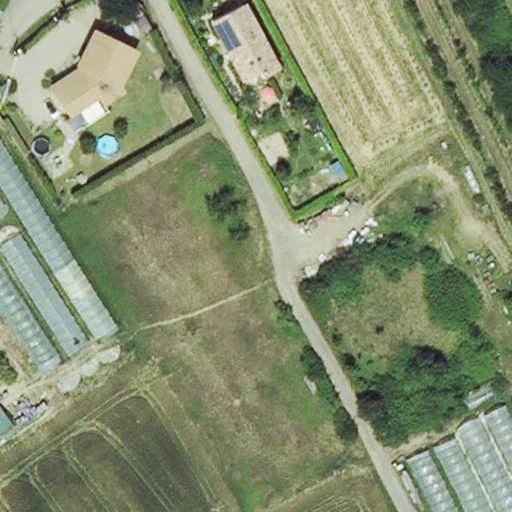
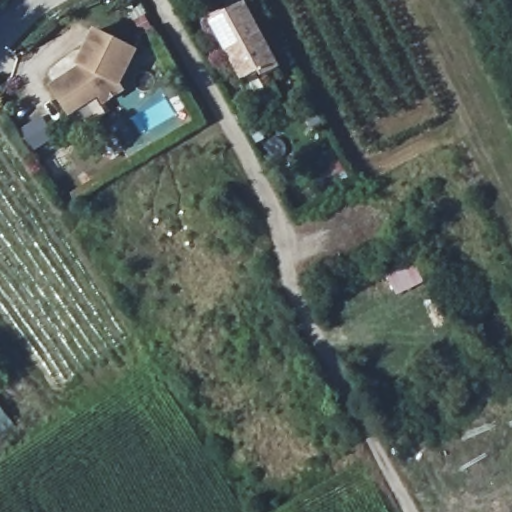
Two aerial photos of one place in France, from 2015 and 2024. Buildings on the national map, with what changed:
unchanged [(273,71),(258,79),(255,74),(239,82),(229,62),(230,56),(228,51),(224,53),(208,22),(239,5),(273,71)]
unchanged [(137,57),(119,90),(123,96),(104,108),(99,101),(70,120),(52,92),(73,79),(75,80),(96,37),(137,57)]
demolished [(117,322),(45,373),(10,331),(0,337),(0,244),(28,229),(0,181),(0,136),(117,322)]
demolished [(512,393),(512,512),(427,512),(397,455),(512,393)]
new [(0,432),(0,410),(10,424),(0,432)]

